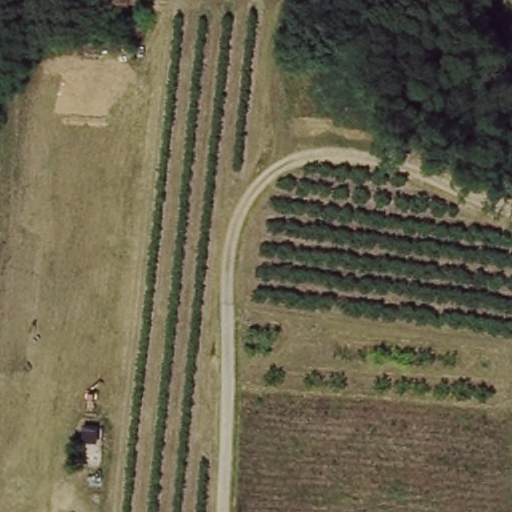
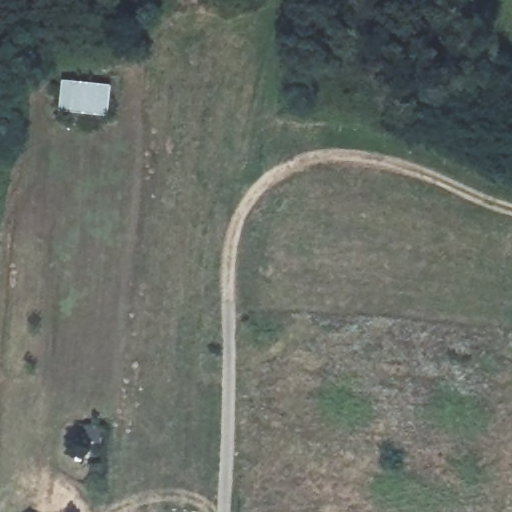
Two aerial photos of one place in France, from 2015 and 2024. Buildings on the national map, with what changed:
new [(112,84),(108,116),(60,111),(64,79),(112,84)]

